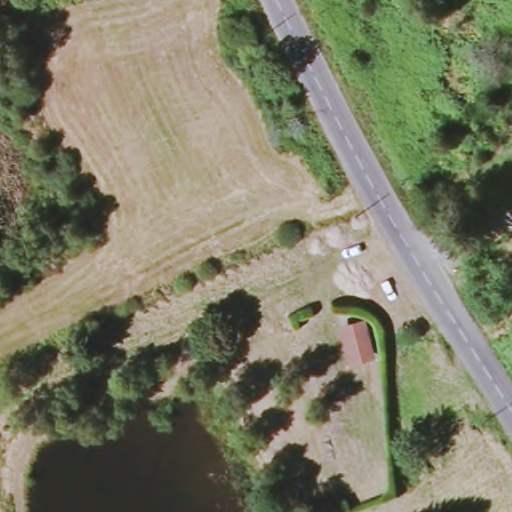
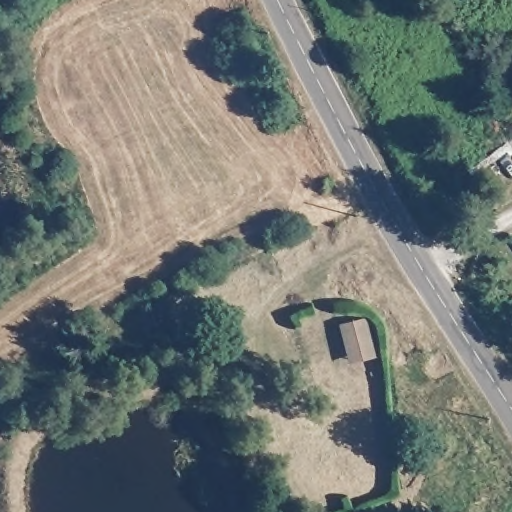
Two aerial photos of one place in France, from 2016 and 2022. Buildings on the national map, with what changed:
unchanged [(460,106),(485,148),(447,170),(423,131),(460,106)]
unchanged [(369,357),(351,363),(340,332),(359,327),(369,357)]

